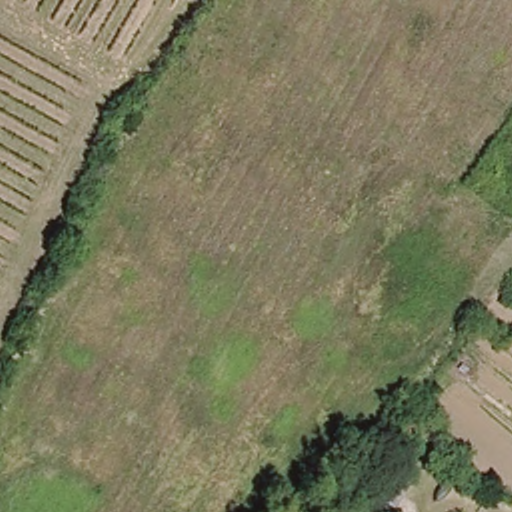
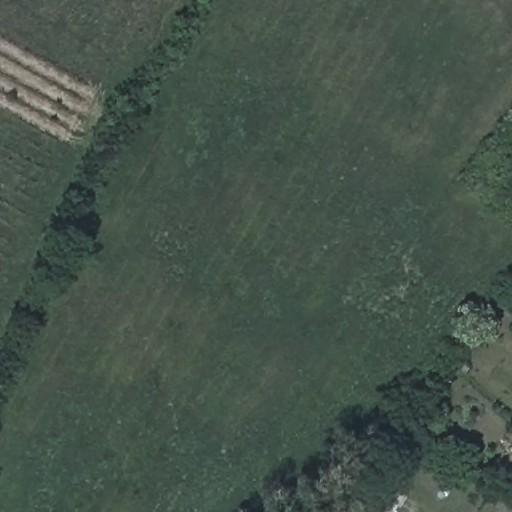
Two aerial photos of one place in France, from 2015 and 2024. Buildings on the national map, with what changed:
unchanged [(360,512),(380,482),(396,492),(400,485),(406,488),(391,512),(360,512)]

